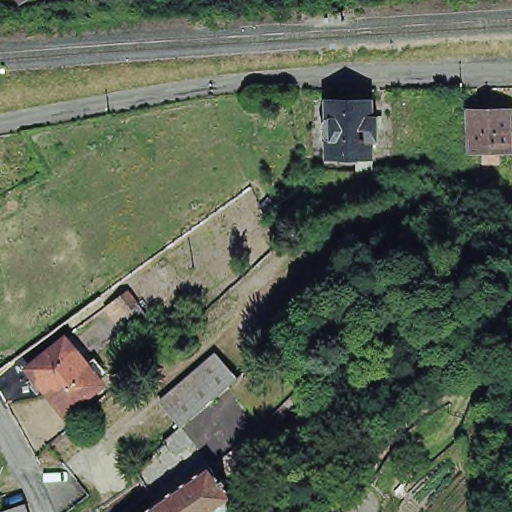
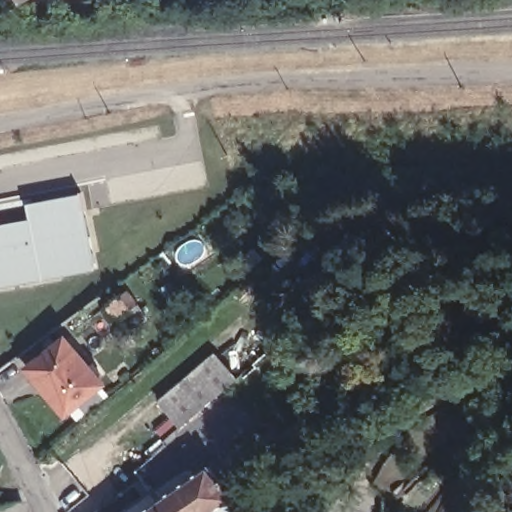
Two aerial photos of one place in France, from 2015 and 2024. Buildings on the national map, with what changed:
unchanged [(16,0),(25,0),(18,4),(16,0)]
demolished [(367,94),(367,101),(372,101),(372,117),(377,117),(375,143),(372,143),(372,160),(325,159),(325,136),(321,131),(321,121),(325,117),(326,99),(348,100),(348,95),(367,94)]
demolished [(510,154),(497,154),(497,165),(482,165),(482,154),(467,154),(468,110),(510,110),(510,154)]
new [(95,271),(0,289),(0,223),(0,225),(30,219),(27,203),(82,194),(95,271)]
unchanged [(125,313),(123,314),(114,302),(127,292),(136,305),(145,316),(133,325),(125,313)]
unchanged [(102,385),(66,414),(30,368),(65,340),(102,385)]
unchanged [(157,407),(213,360),(234,384),(227,390),(178,431),(157,407)]
unchanged [(227,390),(260,430),(210,468),(208,465),(192,477),(156,502),(132,473),(162,447),(160,445),(178,431),(227,390)]
unchanged [(304,448),(288,431),(328,394),(343,410),(304,448)]
unchanged [(156,502),(192,477),(208,465),(210,468),(219,481),(222,480),(225,483),(221,486),(230,498),(237,508),(233,512),(144,512),(156,502)]
unchanged [(23,508),(24,512),(6,512),(23,508)]

